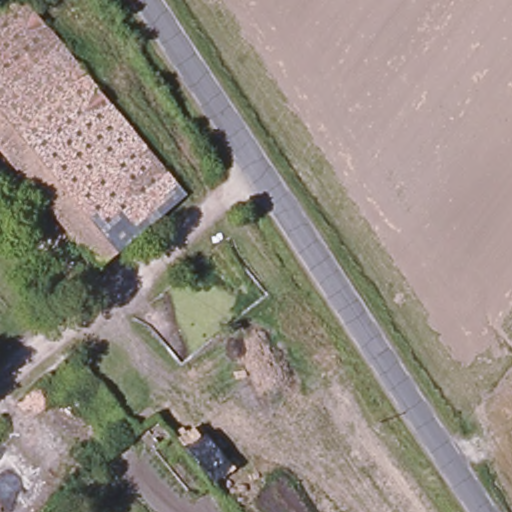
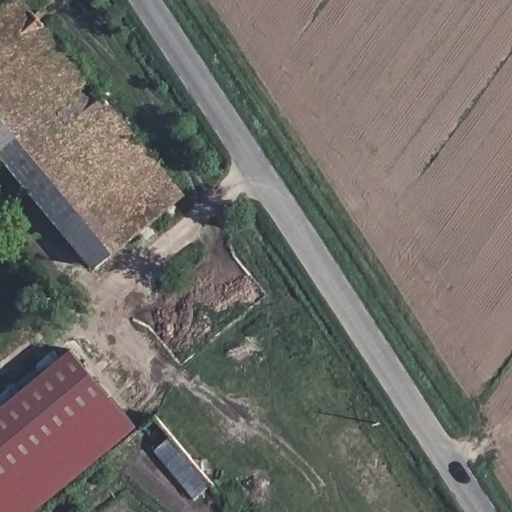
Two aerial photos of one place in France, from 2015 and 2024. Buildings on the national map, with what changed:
unchanged [(20,0),(26,0),(188,188),(98,260),(0,146),(0,17),(20,0)]
new [(72,349),(136,427),(34,512),(0,512),(0,408),(72,349)]

